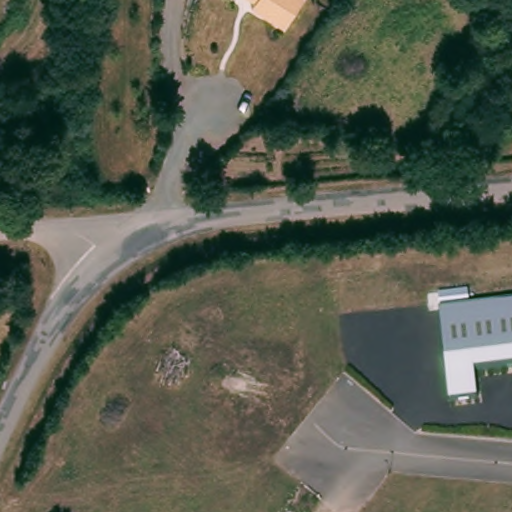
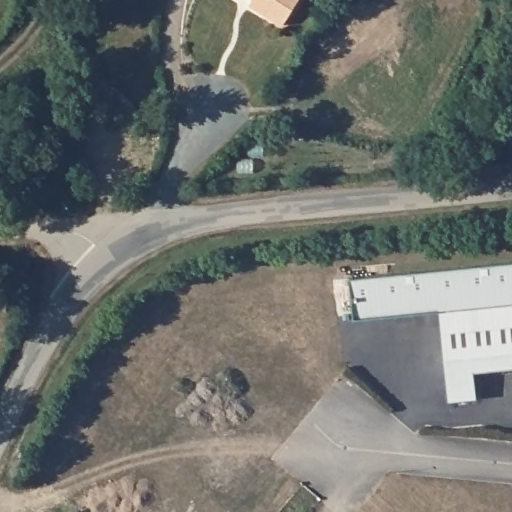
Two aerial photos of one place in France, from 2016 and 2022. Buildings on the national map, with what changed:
unchanged [(282,27),(247,8),(253,0),(299,0),(282,27)]
new [(355,320),(351,280),(512,263),(512,305),(440,312),(355,320)]
unchanged [(478,400),(449,402),(440,312),(512,305),(512,369),(475,373),(478,400)]

